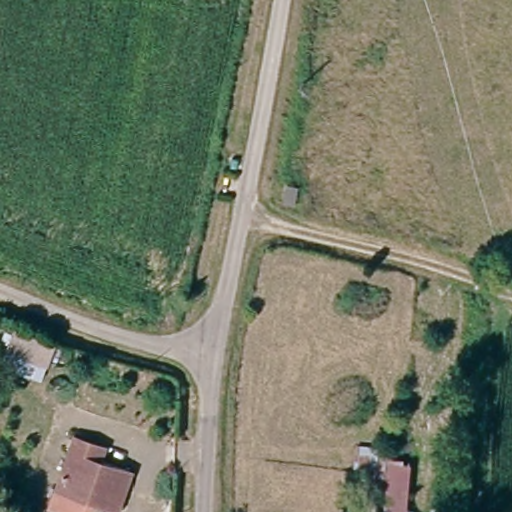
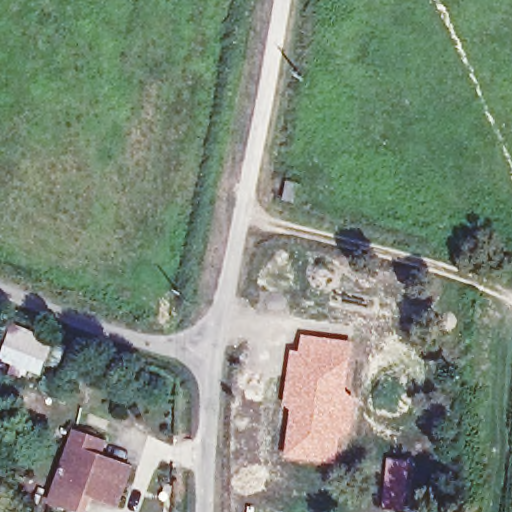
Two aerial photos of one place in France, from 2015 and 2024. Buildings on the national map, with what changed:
unchanged [(276,171),(287,172),(285,192),(273,190),(276,171)]
unchanged [(42,358),(15,346),(23,326),(51,337),(42,358)]
new [(290,350),(298,351),(301,334),(355,342),(348,395),(357,396),(348,442),(340,466),(284,459),(290,410),(282,408),(290,350)]
unchanged [(75,427),(101,437),(95,453),(126,467),(114,497),(113,497),(110,495),(106,504),(52,481),(75,426),(75,427)]
unchanged [(368,471),(370,455),(355,452),(357,440),(400,446),(400,459),(411,463),(403,512),(382,512),(385,470),(368,471)]

